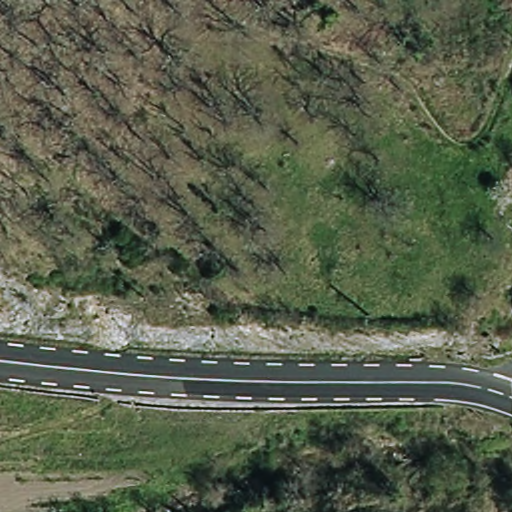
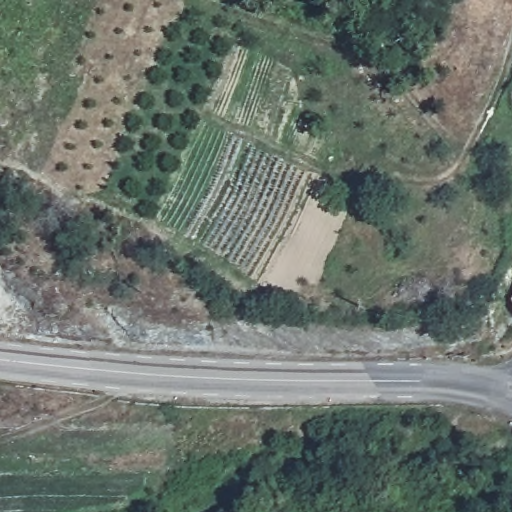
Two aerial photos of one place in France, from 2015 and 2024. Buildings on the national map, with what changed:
unchanged [(507,301),(512,295),(512,306),(507,301)]

